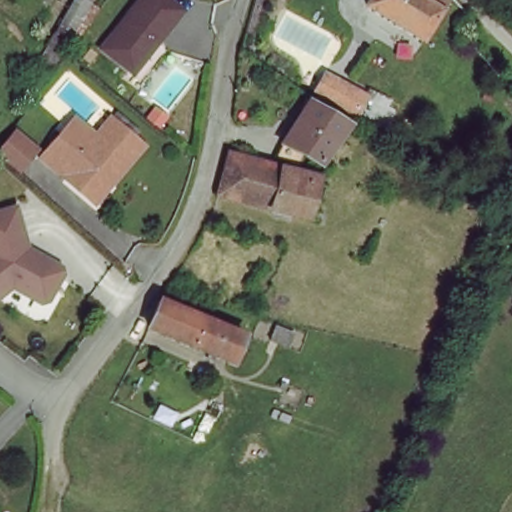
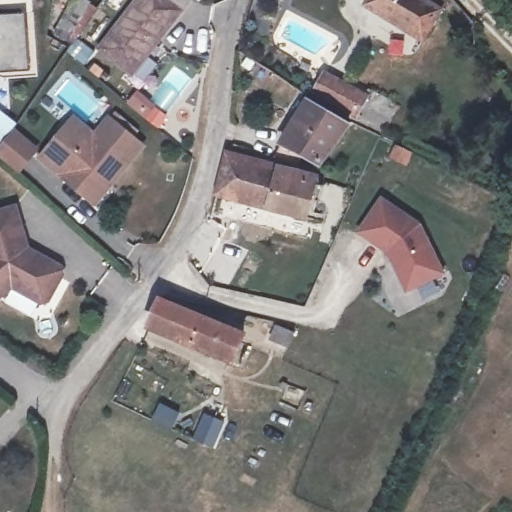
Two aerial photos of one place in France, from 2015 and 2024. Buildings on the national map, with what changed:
unchanged [(49,33),(68,0),(82,0),(85,2),(64,41),(56,55),(42,47),(49,33)]
unchanged [(151,60),(148,58),(136,76),(104,54),(143,0),(163,0),(184,15),(151,60)]
unchanged [(438,17),(419,48),(363,13),(370,0),(438,0),(431,12),(438,17)]
new [(28,70),(0,73),(0,17),(25,14),(28,70)]
unchanged [(328,73),(367,96),(357,114),(317,92),(328,73)]
unchanged [(306,168),(308,158),(301,155),(297,166),(276,161),(281,142),(309,100),(311,102),(341,118),(348,122),(349,122),(315,170),(306,168)]
unchanged [(85,202),(39,162),(74,123),(94,140),(110,122),(143,151),(111,189),(93,209),(85,202)]
new [(34,145),(16,166),(0,152),(0,150),(17,131),(34,145)]
unchanged [(271,206),(218,194),(220,188),(229,153),(283,166),(282,170),(281,171),(271,206)]
unchanged [(316,180),(316,182),(324,184),(315,217),(306,214),(271,206),(281,171),(316,180)]
new [(361,232),(384,199),(422,224),(446,273),(409,290),(396,262),(391,251),(361,232)]
unchanged [(24,245),(57,265),(60,270),(45,296),(38,297),(9,282),(0,290),(0,208),(11,204),(24,245)]
unchanged [(246,338),(233,365),(149,330),(161,302),(246,338)]
unchanged [(271,340),(276,324),(295,330),(289,347),(271,340)]

